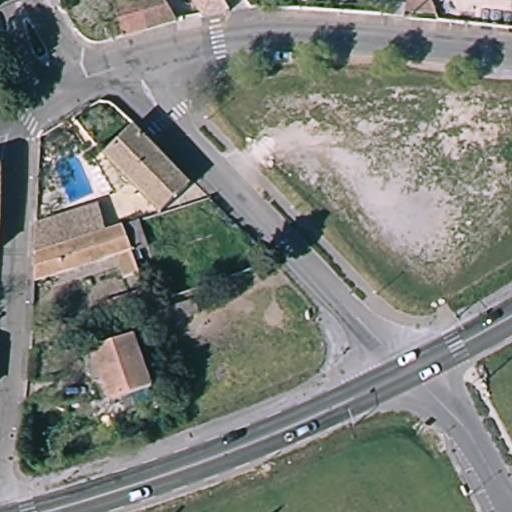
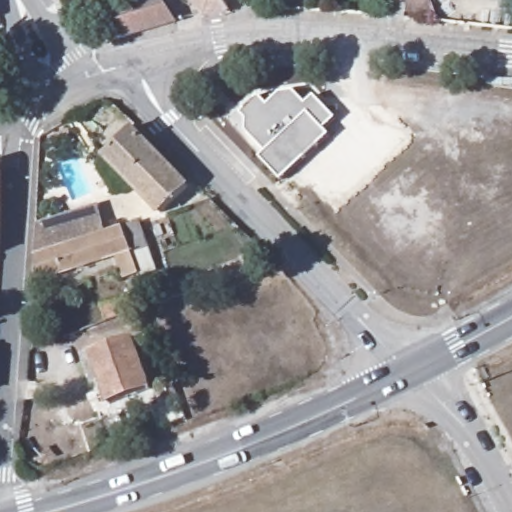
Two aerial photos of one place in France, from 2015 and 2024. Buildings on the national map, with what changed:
unchanged [(145,29),(108,40),(105,28),(116,25),(110,2),(117,0),(158,0),(171,21),(145,29)]
unchanged [(192,0),(221,0),(228,11),(202,15),(192,0)]
new [(409,0),(426,0),(430,14),(408,11),(409,0)]
new [(266,107),(280,95),(293,92),(305,105),(313,97),(335,119),(323,131),(328,137),(280,182),(258,159),(265,154),(245,133),(233,121),(239,115),(258,97),(266,107)]
unchanged [(161,213),(105,156),(132,130),(188,186),(161,213)]
unchanged [(92,203),(102,232),(40,252),(31,221),(92,203)]
unchanged [(40,252),(102,232),(117,227),(133,222),(142,248),(126,253),(133,274),(120,278),(111,254),(31,281),(32,254),(40,252)]
unchanged [(106,324),(101,309),(144,293),(149,308),(106,324)]
unchanged [(150,388),(109,402),(102,382),(92,385),(82,356),(91,353),(133,338),(150,388)]

